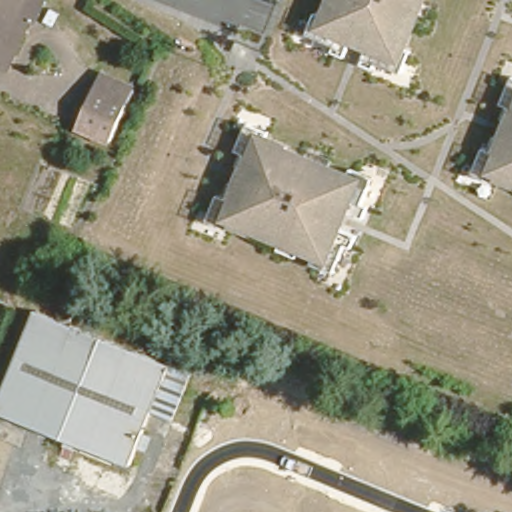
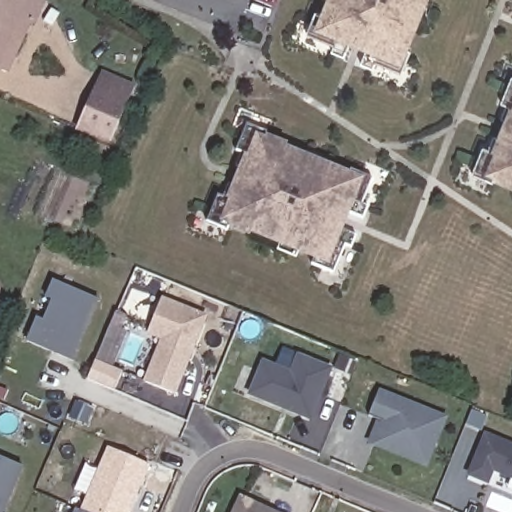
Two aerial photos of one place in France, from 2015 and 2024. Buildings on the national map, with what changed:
unchanged [(39,0),(33,17),(26,15),(10,53),(5,67),(0,65),(0,0),(39,0)]
unchanged [(411,54),(403,76),(377,66),(375,73),(361,68),(371,44),(354,37),(345,61),(332,56),(335,50),(307,39),(316,16),(326,21),(335,0),(423,0),(403,51),(411,54)]
unchanged [(483,149),(488,136),(494,139),(501,120),(496,119),(501,104),(493,101),(505,74),(512,77),(512,178),(511,178),(510,182),(489,174),(486,180),(465,172),(475,146),(483,149)]
unchanged [(104,75),(134,89),(127,101),(125,107),(111,138),(81,125),(95,95),(97,89),(104,75)]
unchanged [(220,197),(227,201),(233,188),(239,190),(244,178),(246,172),(241,170),(247,156),(239,153),(247,134),(251,126),(272,135),(269,142),(268,142),(290,151),(288,155),(350,182),(352,178),(354,174),(375,184),(375,187),(365,210),(371,212),(366,225),(342,214),(340,217),(335,231),(358,241),(353,254),(346,251),(335,278),(312,268),(317,258),(255,230),(253,235),(232,225),(230,232),(209,223),(220,197)]
new [(98,298),(72,360),(26,340),(35,316),(42,319),(50,300),(44,297),(52,279),(98,298)]
new [(161,297),(207,316),(175,395),(144,381),(160,340),(146,335),(161,297)]
demolished [(149,408),(129,458),(0,408),(0,395),(17,350),(34,305),(37,306),(110,335),(190,368),(170,416),(149,408)]
new [(122,371),(115,390),(87,378),(110,325),(127,333),(113,367),(122,371)]
new [(262,359),(289,370),(295,353),(332,368),(310,421),(247,395),(262,359)]
new [(448,417),(426,468),(366,445),(377,418),(368,415),(380,390),(448,417)]
new [(512,445),(512,478),(493,471),(488,483),(465,474),(483,433),(512,445)]
demolished [(276,489),(275,492),(252,483),(269,441),(317,460),(315,469),(333,476),(335,471),(355,480),(373,487),(378,473),(432,494),(425,512),(421,512),(400,504),(398,512),(371,512),(364,510),(363,512),(318,512),(320,506),(301,499),(276,489)]
new [(150,465),(130,512),(73,512),(75,507),(80,510),(106,447),(150,465)]
new [(23,467),(4,512),(0,512),(0,457),(23,467)]
new [(240,494),(277,512),(231,512),(240,494)]

